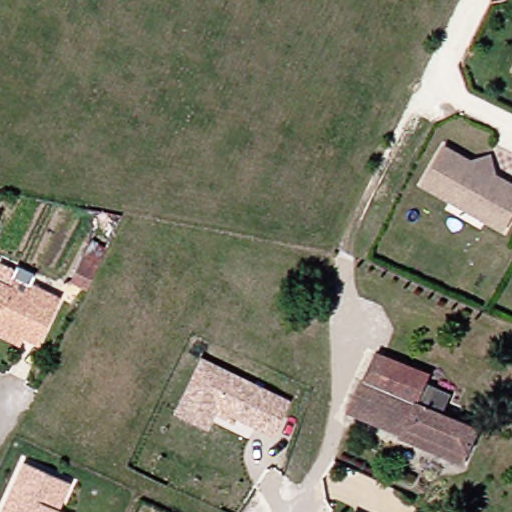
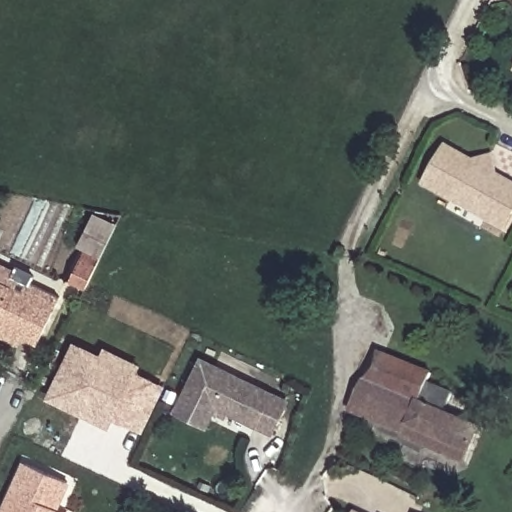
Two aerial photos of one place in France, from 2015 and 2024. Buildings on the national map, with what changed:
unchanged [(442,145),(471,160),(488,152),(493,171),(490,178),(502,185),(506,177),(512,180),(512,211),(506,224),(474,208),(452,197),(423,182),(442,145)]
unchanged [(82,255),(99,262),(86,287),(70,280),(82,255)]
unchanged [(19,286),(35,293),(40,283),(68,297),(46,342),(4,322),(2,325),(0,325),(0,277),(19,286)]
new [(74,340),(101,353),(105,345),(141,363),(137,371),(166,385),(144,433),(114,418),(110,428),(46,398),(74,340)]
unchanged [(437,372),(433,381),(457,392),(448,411),(485,427),(470,461),(407,434),(408,432),(355,410),(370,379),(374,381),(387,351),(437,372)]
unchanged [(212,418),(209,425),(179,410),(206,358),(291,402),(275,435),(258,426),(252,440),(212,418)]
unchanged [(60,510),(59,512),(8,512),(30,462),(72,482),(60,510)]

